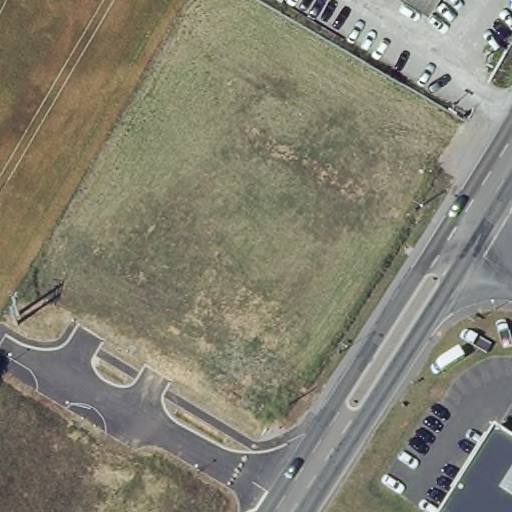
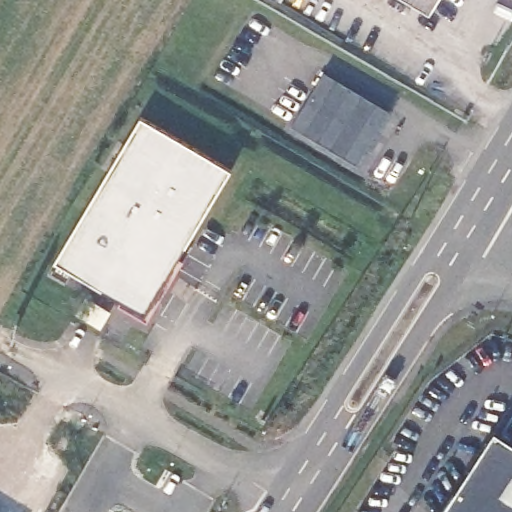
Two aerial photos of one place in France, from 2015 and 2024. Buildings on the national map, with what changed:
unchanged [(417,0),(433,0),(429,7),(417,0)]
new [(324,70),(389,109),(356,164),(291,126),(324,70)]
new [(54,261),(141,114),(231,168),(178,257),(183,260),(146,321),(117,304),(120,300),(54,261)]
new [(85,296),(110,311),(100,327),(76,312),(85,296)]
unchanged [(500,429),(512,437),(512,512),(445,512),(500,429)]

